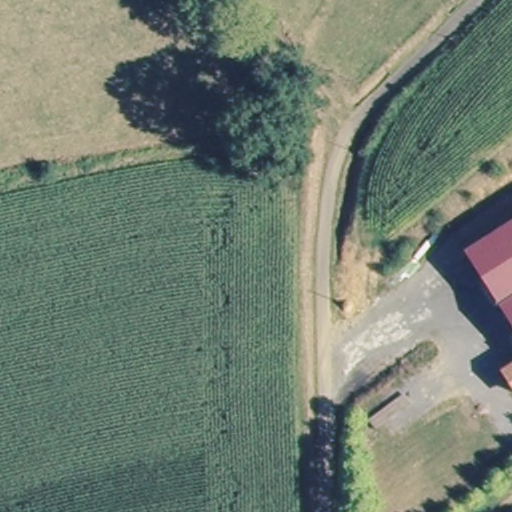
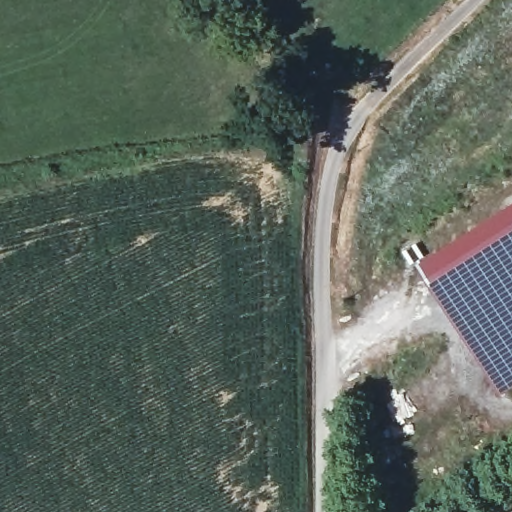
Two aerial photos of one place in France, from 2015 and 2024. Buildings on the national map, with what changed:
new [(418,267),(512,207),(512,389),(502,396),(418,267)]
demolished [(512,240),(512,330),(470,269),(512,240)]

